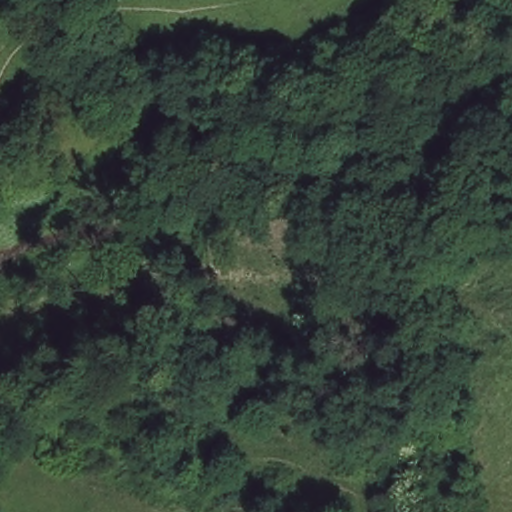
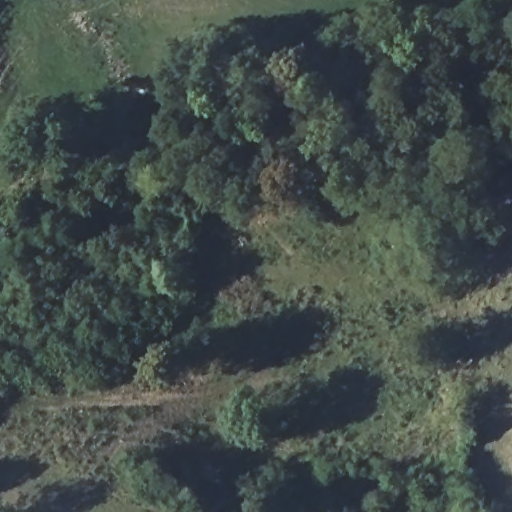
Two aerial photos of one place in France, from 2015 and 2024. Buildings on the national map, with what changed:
[]

